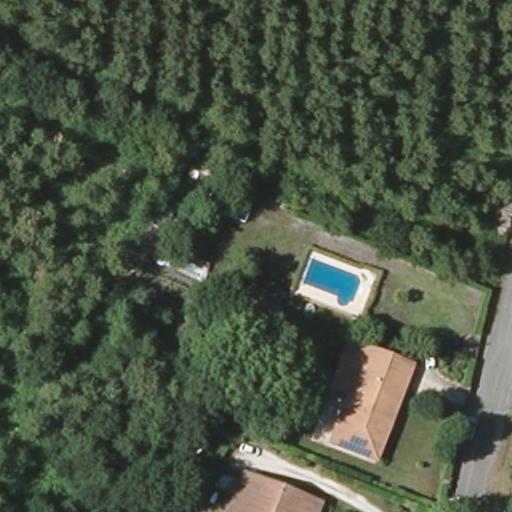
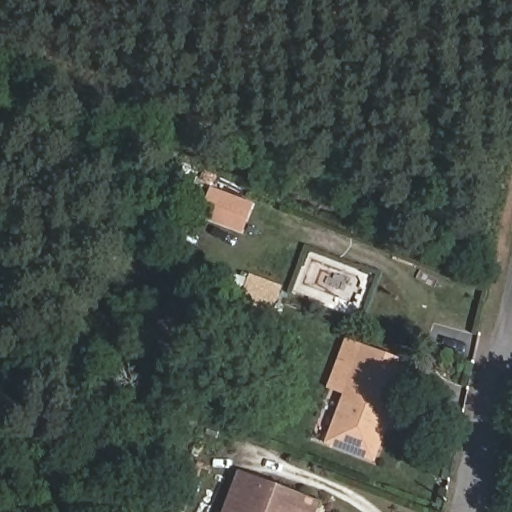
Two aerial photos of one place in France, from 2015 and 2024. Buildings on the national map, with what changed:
new [(255,204),(243,235),(205,220),(216,189),(255,204)]
unchanged [(269,320),(247,311),(259,281),(270,285),(280,289),(269,320)]
unchanged [(328,441),(355,371),(348,368),(358,344),(365,346),(403,361),(410,363),(400,388),(388,420),(373,458),(368,456),(328,441)]
unchanged [(313,512),(224,512),(238,475),(316,504),(313,512)]

